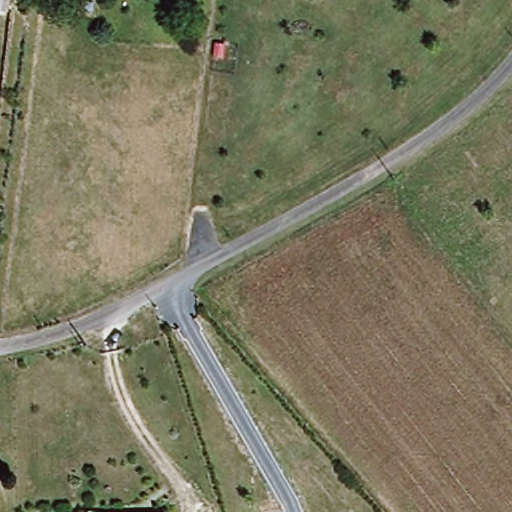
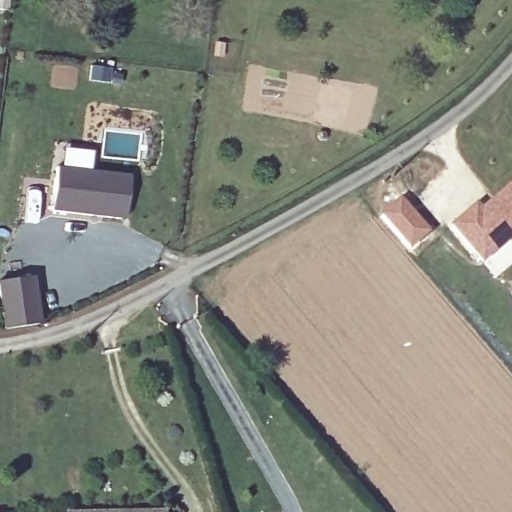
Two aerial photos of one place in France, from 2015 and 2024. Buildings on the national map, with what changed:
unchanged [(4,1),(4,0),(19,0),(19,2),(4,1)]
new [(55,169),(128,177),(122,221),(50,212),(55,169)]
new [(481,262),(450,226),(475,205),(482,214),(490,208),(486,204),(512,181),(512,235),(498,247),(481,262)]
new [(41,322),(2,328),(0,311),(0,279),(34,272),(41,322)]

